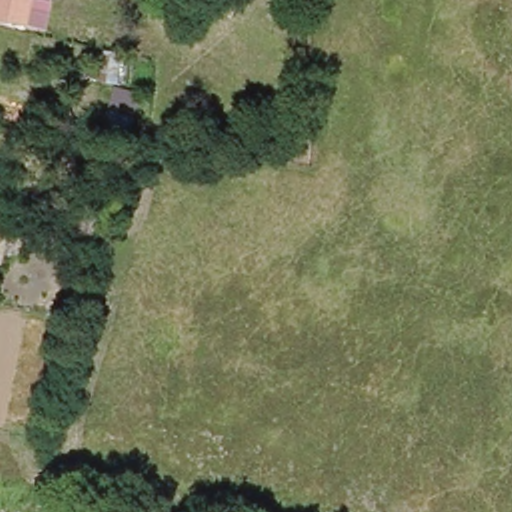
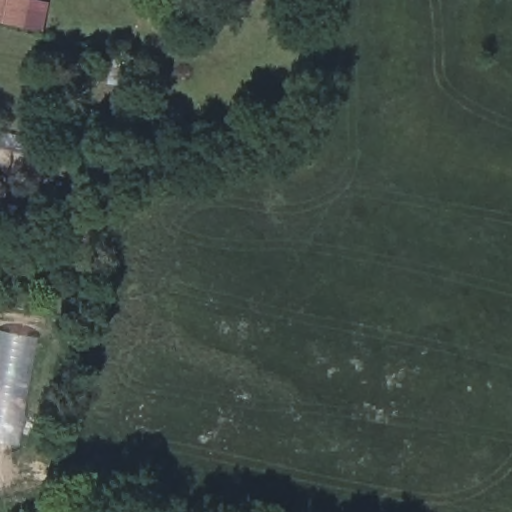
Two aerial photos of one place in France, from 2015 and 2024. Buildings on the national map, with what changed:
unchanged [(23,29),(20,29),(0,25),(0,0),(29,0),(51,5),(45,34),(23,29)]
new [(41,337),(21,444),(0,442),(0,331),(41,337)]

